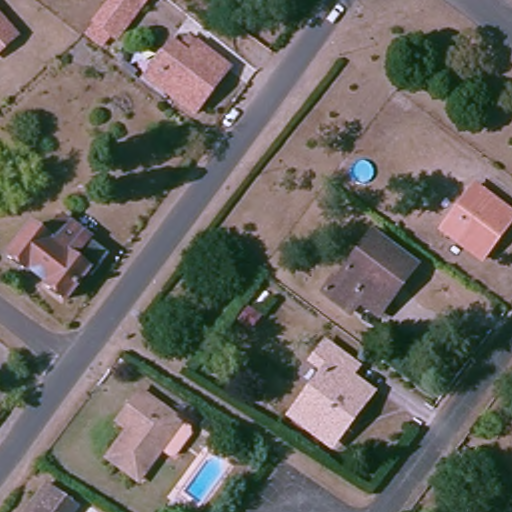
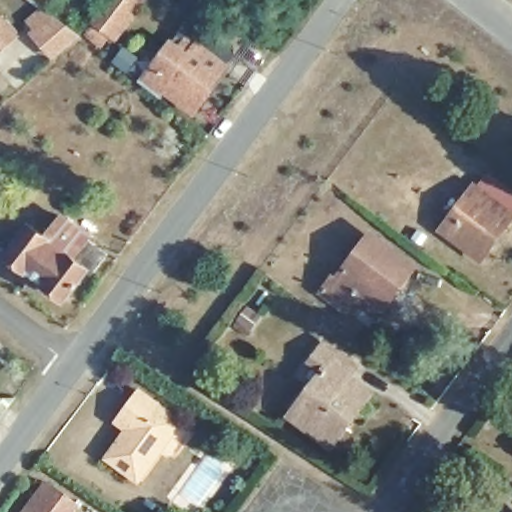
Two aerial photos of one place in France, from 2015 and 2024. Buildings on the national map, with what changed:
unchanged [(115,0),(150,0),(142,9),(138,6),(112,40),(95,26),(115,0)]
new [(33,30),(26,21),(49,1),(80,37),(53,61),(29,33),(33,30)]
unchanged [(24,35),(0,56),(0,6),(3,10),(24,35)]
unchanged [(209,51),(212,49),(241,71),(208,116),(177,93),(172,99),(156,87),(186,49),(194,55),(202,45),(209,51)]
unchanged [(487,261),(446,231),(478,188),(512,213),(512,227),(507,233),(498,246),(487,261)]
unchanged [(31,228),(47,240),(64,218),(91,238),(89,240),(109,256),(94,276),(89,271),(67,300),(46,285),(48,282),(30,268),(27,272),(9,258),(31,228)]
unchanged [(383,307),(369,297),(359,310),(332,290),(342,276),(347,280),(380,237),(422,270),(411,283),(389,312),(383,307)]
unchanged [(348,433),(336,448),(297,417),(332,373),(319,362),(329,351),(357,373),(348,385),(361,395),(370,403),(348,433)]
unchanged [(185,425),(143,483),(111,461),(131,435),(120,428),(132,413),(145,395),(185,425)]
new [(0,418),(0,399),(14,400),(0,418)]
unchanged [(51,488),(74,506),(70,512),(25,512),(45,484),(51,488)]

